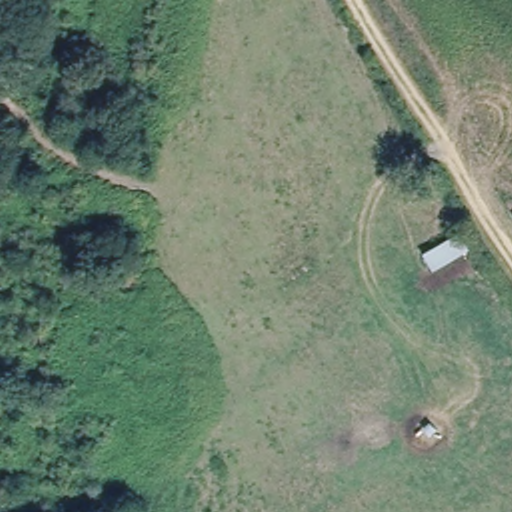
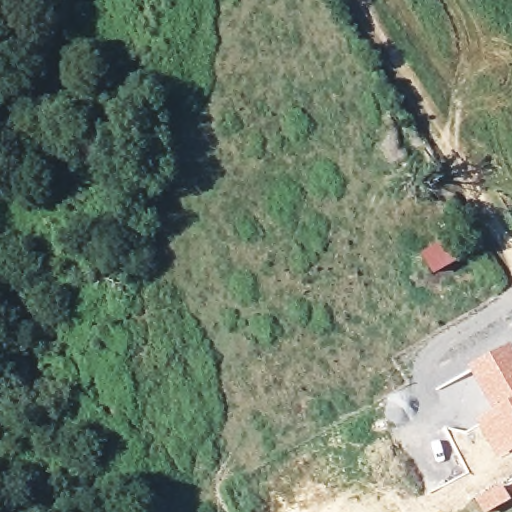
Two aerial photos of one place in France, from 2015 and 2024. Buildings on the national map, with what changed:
unchanged [(428,270),(420,253),(457,232),(466,248),(428,270)]
new [(510,343),(512,348),(512,452),(495,462),(473,423),(489,413),(465,368),(510,343)]
new [(499,482),(510,500),(489,512),(480,512),(472,498),(499,482)]

